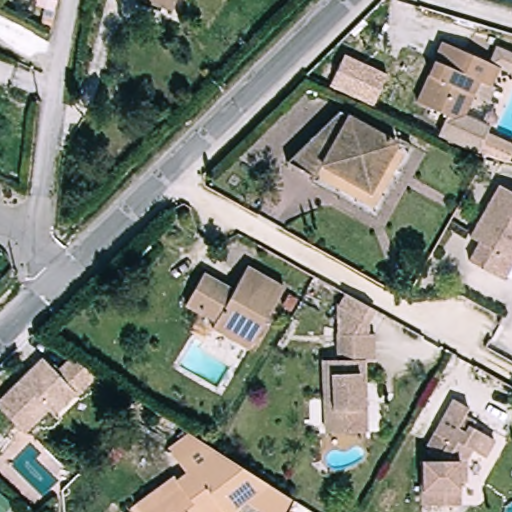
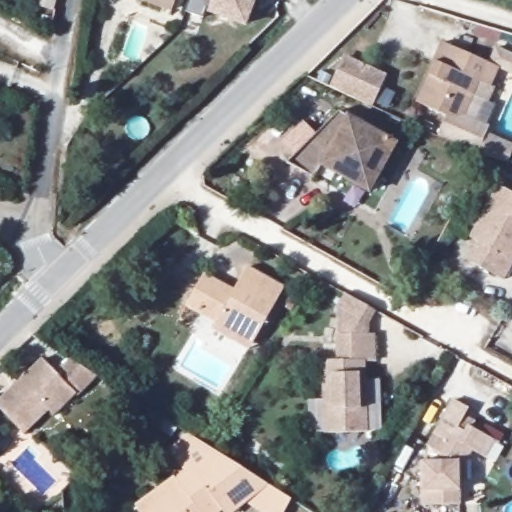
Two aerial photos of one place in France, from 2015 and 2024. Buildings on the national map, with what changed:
new [(256,0),(247,26),(207,13),(204,19),(186,12),(190,0),(256,0)]
unchanged [(484,105),(469,100),(460,120),(486,130),(474,157),(433,136),(441,119),(412,103),(432,60),(441,41),(462,52),(487,65),(495,49),(512,57),(512,71),(497,64),(485,89),(490,90),(484,105)]
unchanged [(386,76),(374,106),(332,87),(345,55),(386,76)]
unchanged [(347,105),(404,140),(376,188),(330,160),(321,176),(294,159),(347,105)]
unchanged [(482,241),(512,188),(512,279),(485,265),(494,247),(482,241)]
unchanged [(220,325),(226,315),(211,306),(203,315),(187,306),(206,274),(221,281),(220,286),(236,295),(241,285),(252,268),(287,288),(277,306),(254,345),(220,325)]
unchanged [(369,427),(327,429),(326,358),(341,358),(342,346),(342,330),(340,293),(372,312),(362,330),(378,331),(379,356),(359,356),(366,360),(369,427)]
unchanged [(46,410),(21,433),(0,410),(0,397),(40,358),(54,372),(69,358),(97,376),(74,395),(51,415),(46,410)]
unchanged [(434,469),(435,459),(443,447),(429,438),(442,412),(448,403),(462,412),(459,421),(452,432),(459,436),(466,430),(480,438),(473,453),(467,450),(460,460),(458,485),(452,485),(450,510),(414,508),(416,468),(434,469)]
unchanged [(225,455),(190,480),(171,455),(194,435),(215,448),(225,455)]
unchanged [(243,512),(159,512),(183,495),(179,486),(190,480),(225,455),(277,488),(244,511),(243,512)]
unchanged [(244,511),(277,488),(297,501),(292,512),(245,512),(244,511)]

